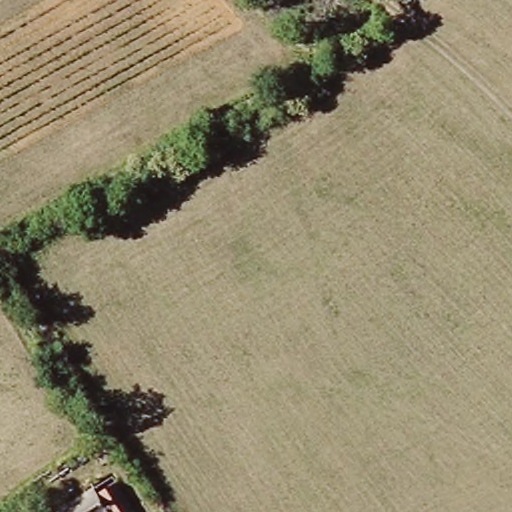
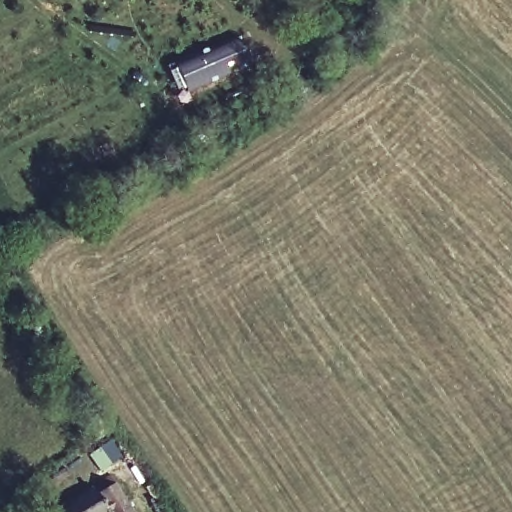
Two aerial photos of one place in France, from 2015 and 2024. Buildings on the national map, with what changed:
new [(197,62),(195,57),(237,38),(247,60),(185,87),(177,67),(197,62)]
unchanged [(118,486),(133,512),(103,512),(97,501),(118,486)]
unchanged [(100,512),(57,512),(88,493),(100,512)]

